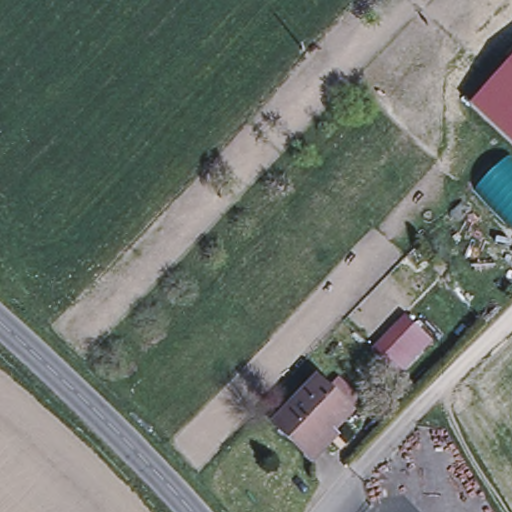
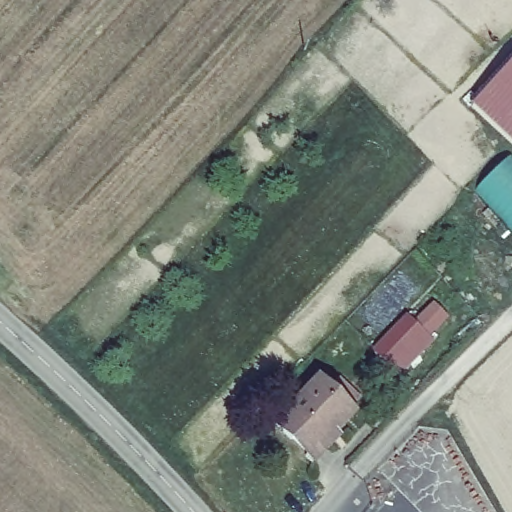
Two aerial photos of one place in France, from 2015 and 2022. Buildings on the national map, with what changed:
unchanged [(470,104),(512,58),(512,143),(470,104)]
unchanged [(512,155),(512,229),(475,189),(512,154),(512,155)]
unchanged [(430,339),(399,373),(392,367),(374,349),(405,317),(424,334),(430,339)]
unchanged [(352,409),(309,454),(292,438),(290,441),(274,426),(320,378),(352,409)]

